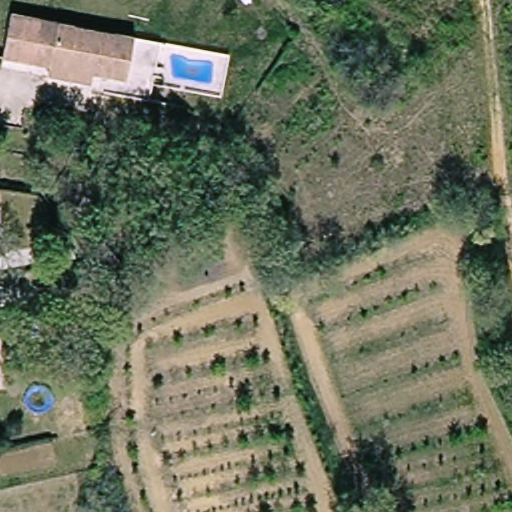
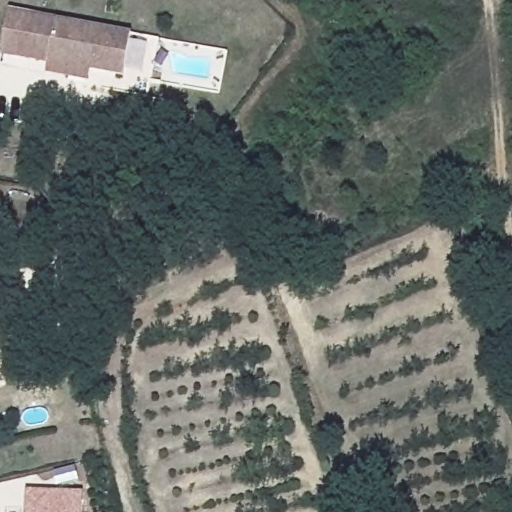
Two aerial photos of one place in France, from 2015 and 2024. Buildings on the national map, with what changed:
unchanged [(47,72),(50,60),(3,49),(12,10),(132,38),(123,77),(90,70),(87,82),(47,72)]
new [(26,512),(27,490),(83,493),(83,512),(26,512)]

